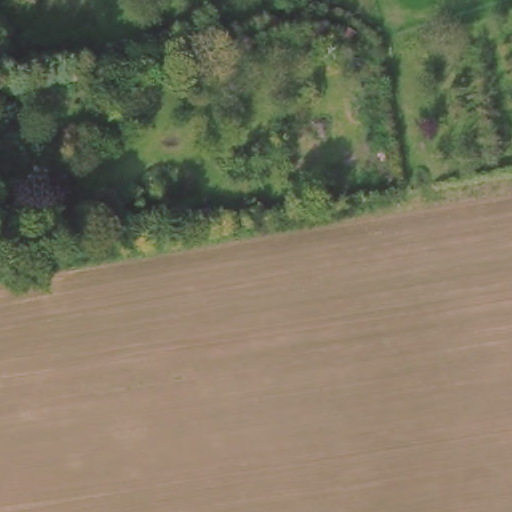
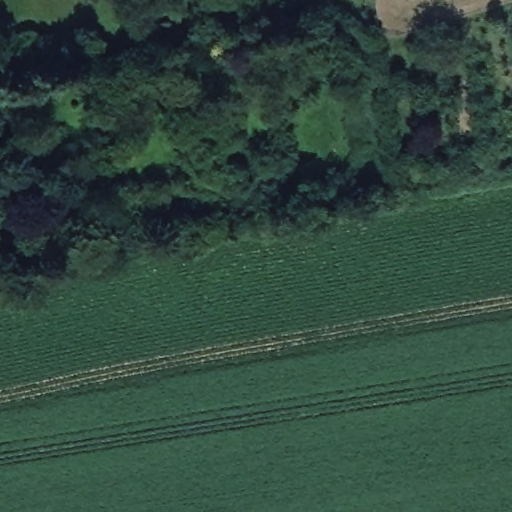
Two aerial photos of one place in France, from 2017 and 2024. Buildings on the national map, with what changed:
unchanged [(62,174),(18,185),(14,160),(55,147),(62,174)]
unchanged [(209,214),(208,199),(218,196),(222,229),(188,237),(184,213),(209,214)]

